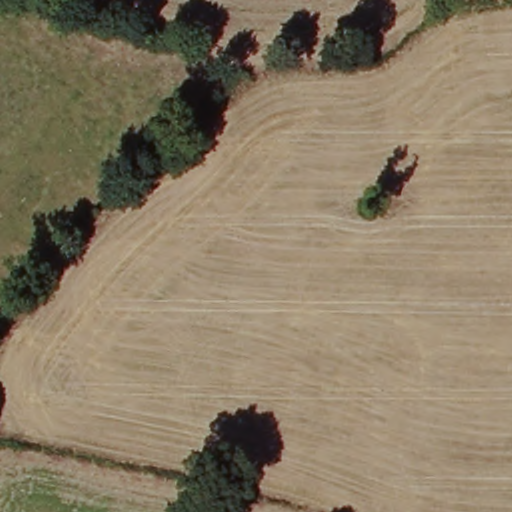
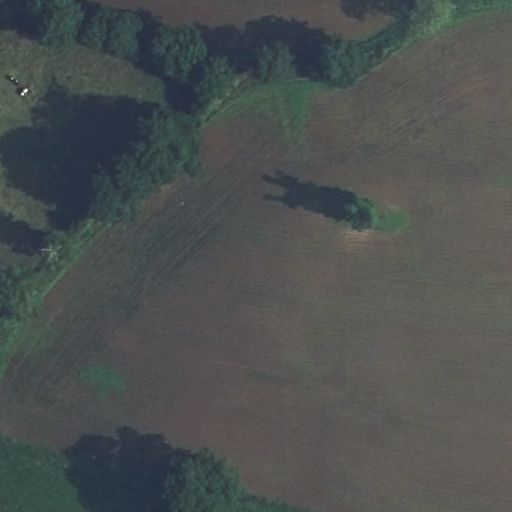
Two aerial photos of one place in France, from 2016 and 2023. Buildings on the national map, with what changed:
[]

